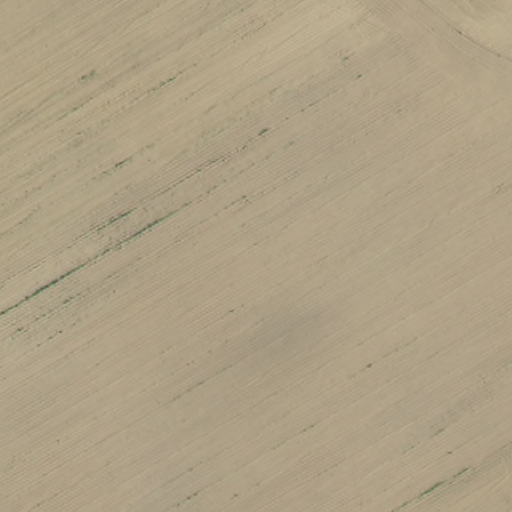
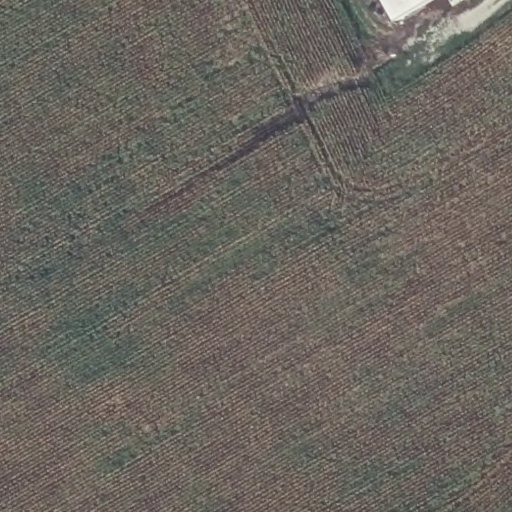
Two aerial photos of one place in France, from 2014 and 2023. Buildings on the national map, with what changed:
new [(397,22),(384,0),(435,0),(397,22)]

